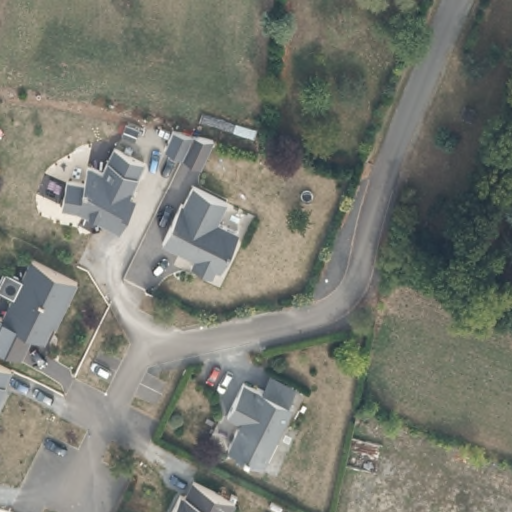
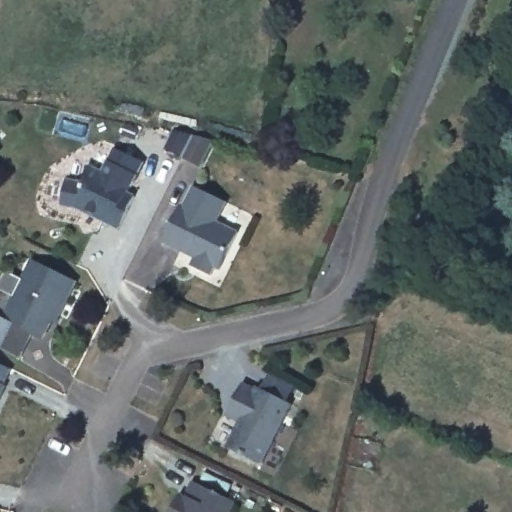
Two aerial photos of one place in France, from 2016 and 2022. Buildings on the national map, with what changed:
unchanged [(201,165),(182,157),(164,149),(174,128),(194,133),(214,139),(201,165)]
unchanged [(103,216),(97,215),(92,212),(78,207),(62,205),(67,180),(84,182),(88,165),(103,171),(108,160),(113,148),(143,160),(137,174),(132,187),(128,185),(124,192),(135,195),(120,229),(104,221),(103,216)]
unchanged [(217,269),(211,266),(207,277),(185,267),(191,255),(192,252),(178,245),(177,248),(160,240),(179,201),(182,203),(192,184),(225,201),(215,220),(236,231),(217,269)]
unchanged [(54,310),(48,325),(35,330),(31,329),(20,352),(0,343),(0,313),(2,313),(10,293),(19,296),(27,277),(20,275),(29,255),(74,275),(58,311),(54,310)]
unchanged [(9,387),(0,407),(0,364),(15,370),(7,387),(9,387)]
unchanged [(264,466),(230,450),(236,435),(238,435),(243,425),(228,420),(243,386),(257,391),(258,390),(263,392),(270,377),(296,388),(289,405),(292,406),(264,466)]
unchanged [(176,497),(182,499),(189,483),(231,503),(227,512),(169,512),(176,497)]

